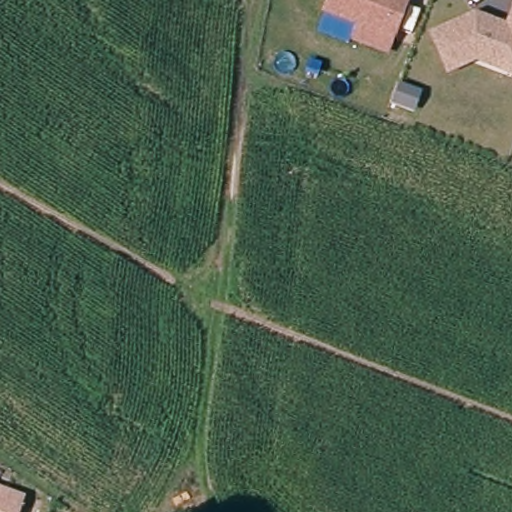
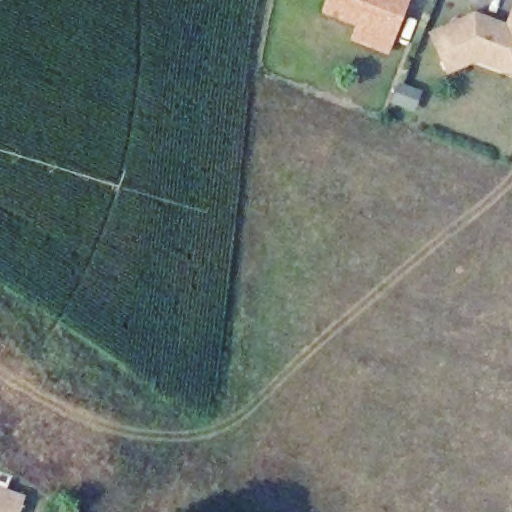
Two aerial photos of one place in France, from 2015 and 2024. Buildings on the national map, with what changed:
unchanged [(358,24),(324,10),(327,0),(405,0),(392,38),(387,52),(353,39),(358,24)]
unchanged [(475,58),(448,73),(430,39),(472,15),(492,23),(489,28),(500,32),(502,28),(504,29),(512,10),(512,73),(506,70),(475,58)]
unchanged [(401,101),(408,84),(421,89),(427,91),(420,109),(414,106),(401,101)]
unchanged [(17,512),(0,512),(0,488),(23,497),(17,512)]

